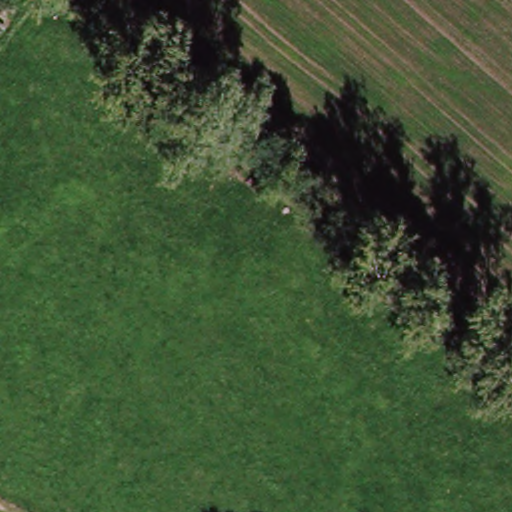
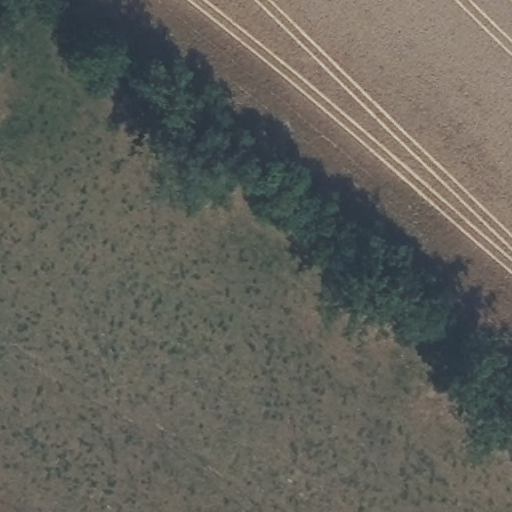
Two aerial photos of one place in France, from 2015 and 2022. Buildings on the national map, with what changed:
[]

